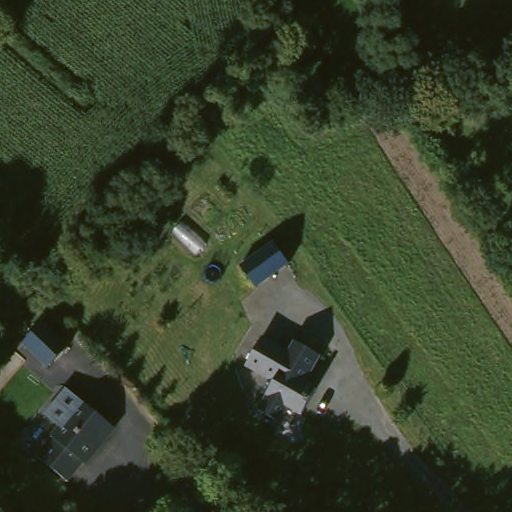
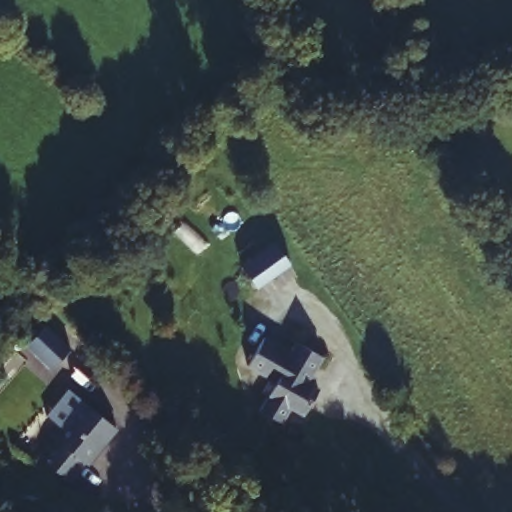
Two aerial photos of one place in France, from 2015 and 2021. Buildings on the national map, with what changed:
unchanged [(244,265),(277,240),(293,262),(260,286),(244,265)]
unchanged [(78,344),(56,363),(34,336),(55,317),(78,344)]
unchanged [(298,410),(290,425),(268,413),(276,398),(270,395),(280,382),(256,370),(272,340),(298,355),(305,344),(331,358),(317,385),(327,390),(312,417),(298,410)]
unchanged [(118,422),(102,447),(99,445),(75,483),(42,462),(57,440),(54,438),(63,424),(47,414),(64,387),(118,422)]

